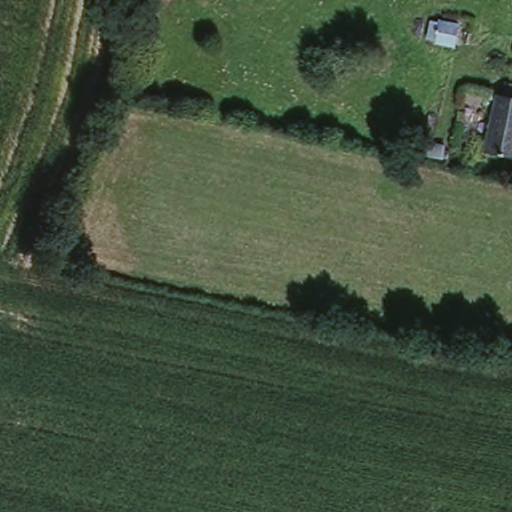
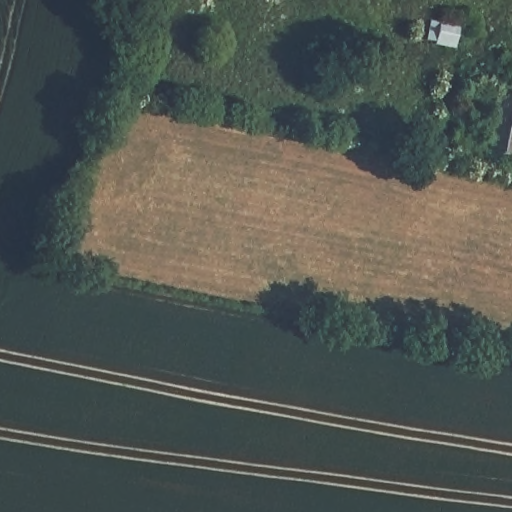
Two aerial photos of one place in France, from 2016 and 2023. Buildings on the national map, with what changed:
unchanged [(512,96),(512,159),(484,155),(496,92),(512,96)]

